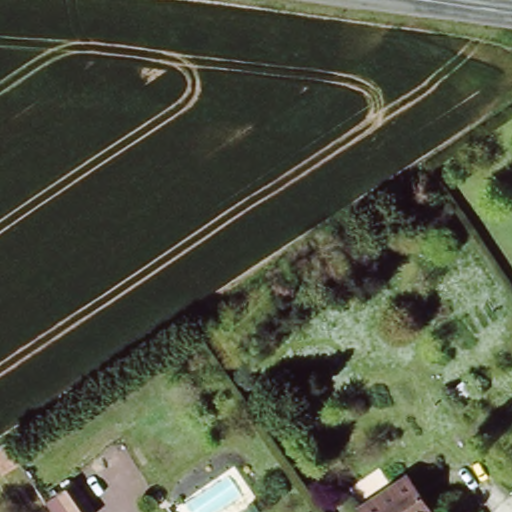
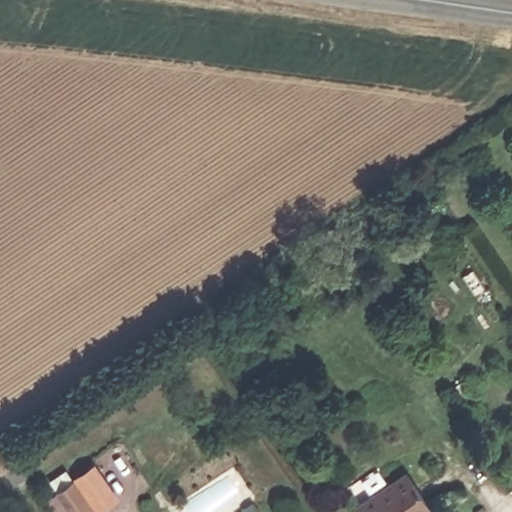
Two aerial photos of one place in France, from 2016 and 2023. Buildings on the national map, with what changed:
unchanged [(0,462),(0,437),(11,454),(0,462)]
unchanged [(46,479),(64,466),(87,500),(70,512),(69,512),(46,479)]
unchanged [(356,509),(403,472),(435,510),(432,512),(359,512),(356,509)]

